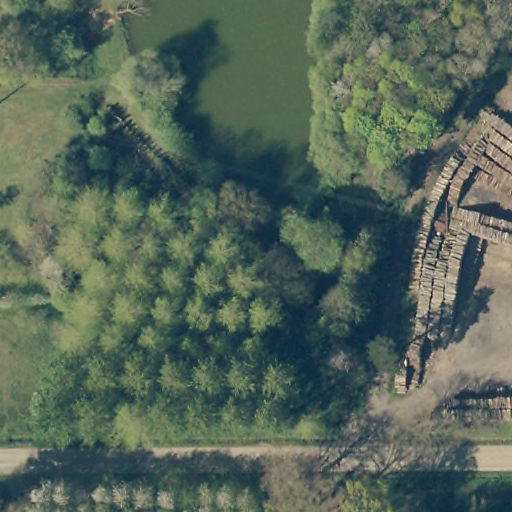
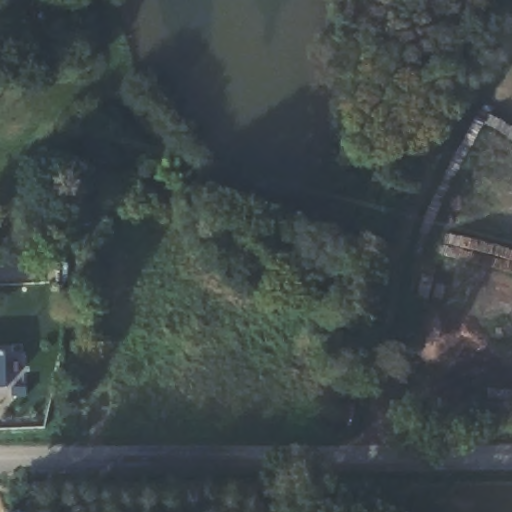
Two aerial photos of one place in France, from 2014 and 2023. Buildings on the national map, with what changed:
unchanged [(364,361),(337,356),(345,320),(358,323),(372,326),(364,361)]
new [(8,388),(0,389),(0,350),(7,350),(8,388)]

